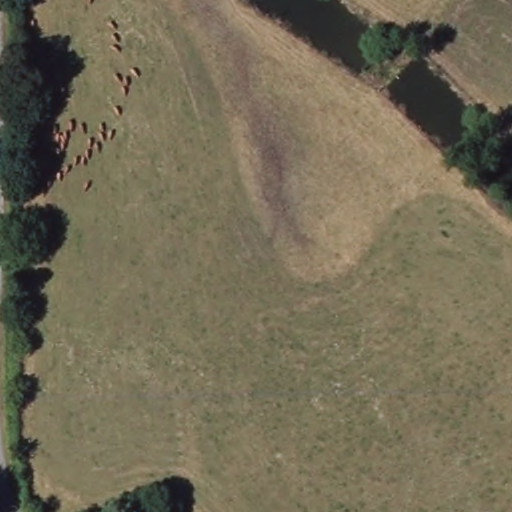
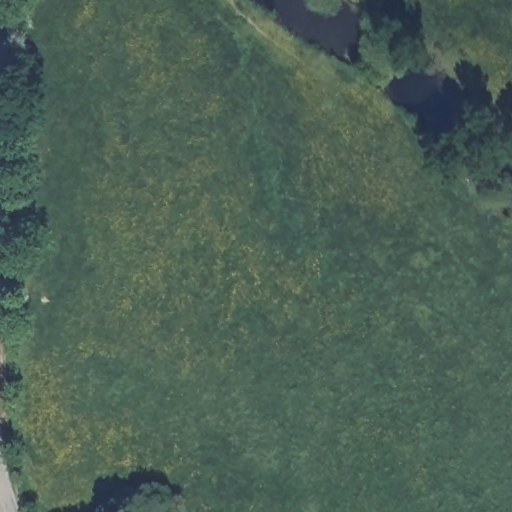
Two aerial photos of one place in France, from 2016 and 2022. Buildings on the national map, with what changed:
[]

